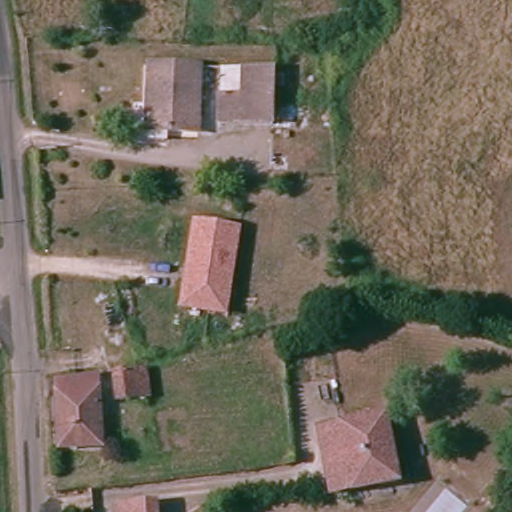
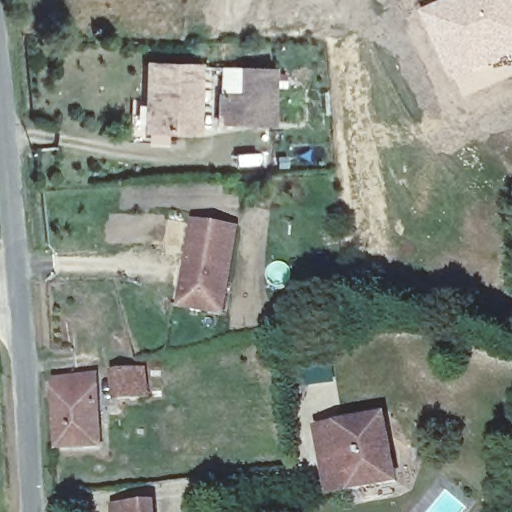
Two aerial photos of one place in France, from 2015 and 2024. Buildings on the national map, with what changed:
new [(512,0),(512,60),(504,64),(456,85),(422,12),(447,0),(512,0)]
unchanged [(148,104),(146,76),(146,64),(172,64),(202,65),(202,129),(175,130),(148,130),(148,104)]
unchanged [(275,127),(222,124),(224,94),(225,70),(248,71),(279,73),(275,127)]
unchanged [(179,307),(193,216),(242,226),(228,316),(179,307)]
unchanged [(113,371),(164,363),(169,386),(149,390),(150,400),(119,402),(113,371)]
unchanged [(105,446),(58,452),(52,377),(96,374),(105,446)]
unchanged [(332,463),(326,431),(389,420),(403,483),(361,494),(339,499),(332,463)]
unchanged [(159,505),(159,512),(118,512),(118,508),(159,505)]

